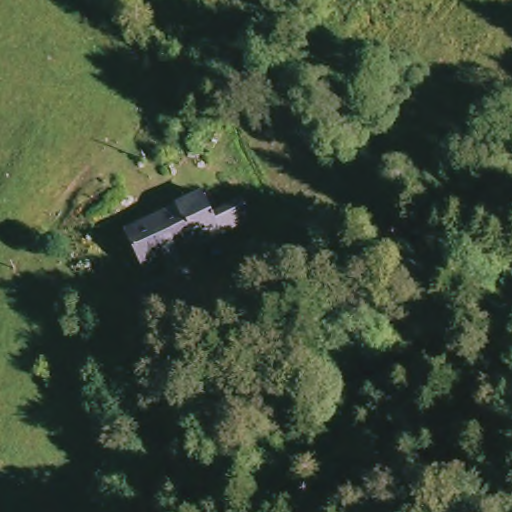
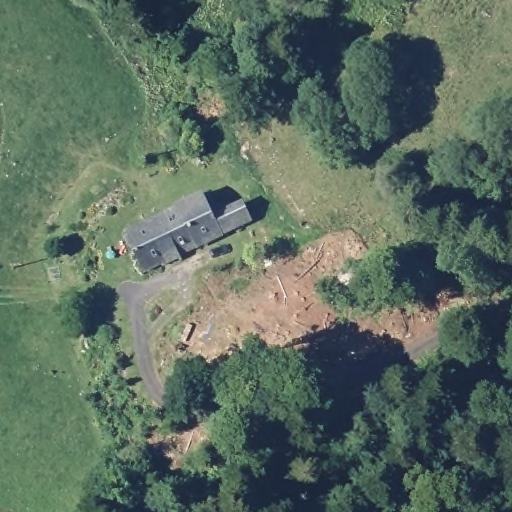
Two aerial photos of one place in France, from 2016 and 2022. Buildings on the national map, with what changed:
unchanged [(148,276),(129,234),(208,195),(220,222),(248,211),(252,224),(148,276)]

